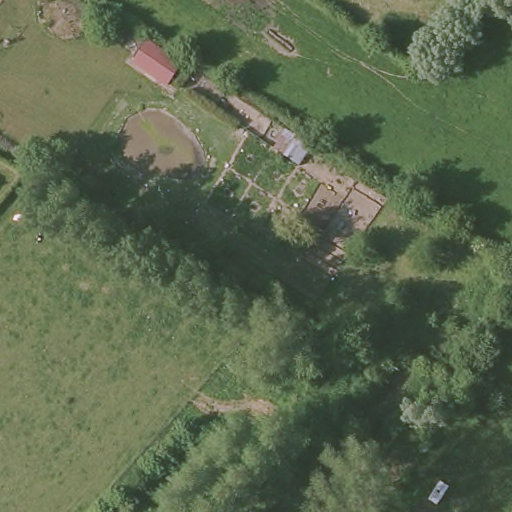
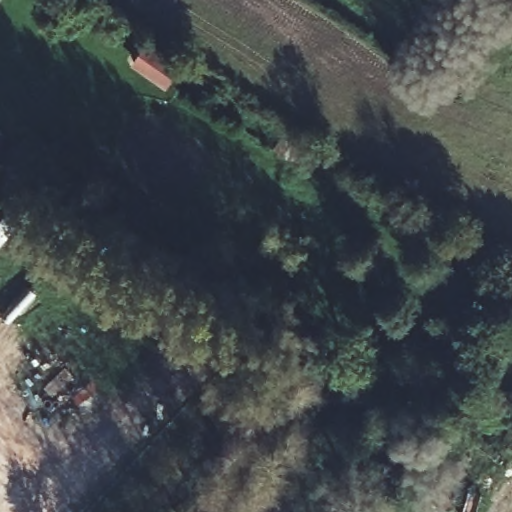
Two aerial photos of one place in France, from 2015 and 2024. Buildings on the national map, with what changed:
unchanged [(149,39),(184,61),(169,88),(132,65),(149,39)]

